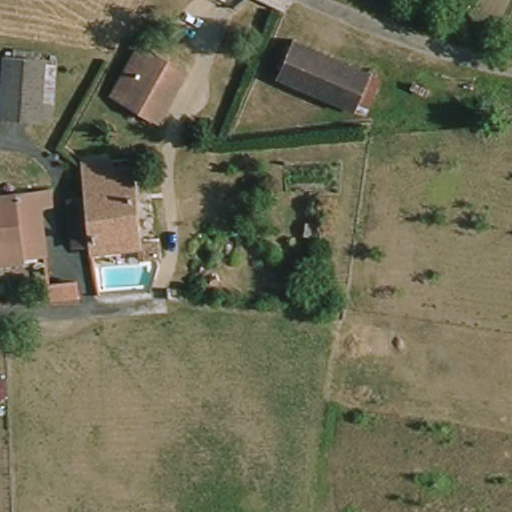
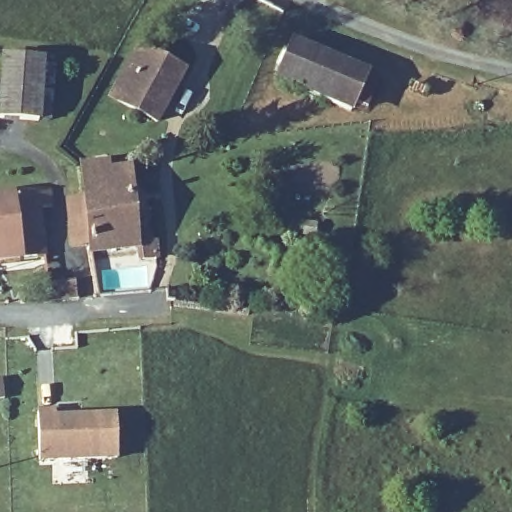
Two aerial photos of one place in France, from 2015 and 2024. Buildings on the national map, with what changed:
unchanged [(304,40),(340,59),(322,100),(283,80),(304,40)]
unchanged [(153,123),(117,102),(107,95),(125,67),(138,49),(148,54),(185,73),(153,123)]
unchanged [(0,115),(0,72),(1,54),(41,56),(36,118),(0,115)]
unchanged [(340,59),(371,75),(350,115),(322,100),(340,59)]
unchanged [(86,162),(104,160),(107,171),(127,167),(133,195),(143,249),(94,256),(94,251),(88,202),(92,201),(86,162)]
unchanged [(34,203),(36,219),(40,260),(0,264),(0,190),(49,185),(51,201),(34,203)]
unchanged [(88,202),(94,251),(75,255),(67,205),(88,202)]
unchanged [(164,260),(151,262),(149,245),(161,243),(164,260)]
unchanged [(77,283),(79,300),(52,301),(51,285),(77,283)]
new [(55,416),(68,416),(79,416),(116,415),(118,456),(39,459),(38,412),(55,411),(55,416)]

